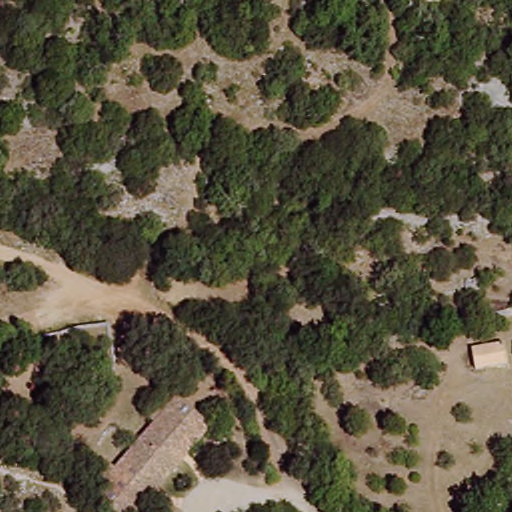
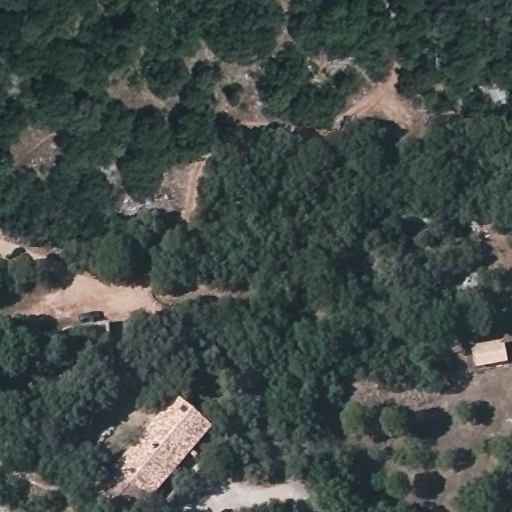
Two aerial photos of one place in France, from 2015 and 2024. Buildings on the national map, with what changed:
unchanged [(505,340),(509,357),(475,365),(471,346),(505,340)]
unchanged [(94,501),(177,396),(213,426),(146,512),(108,512),(94,501)]

